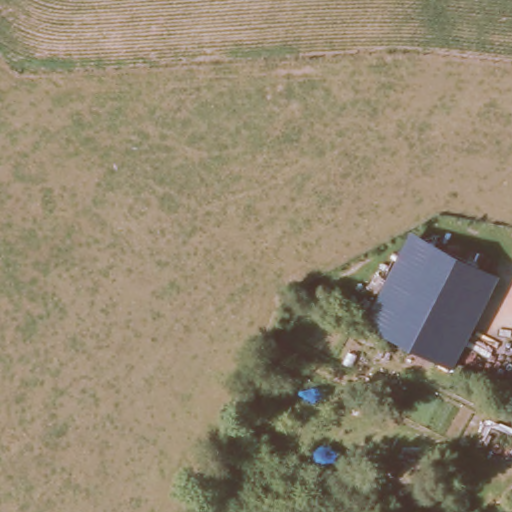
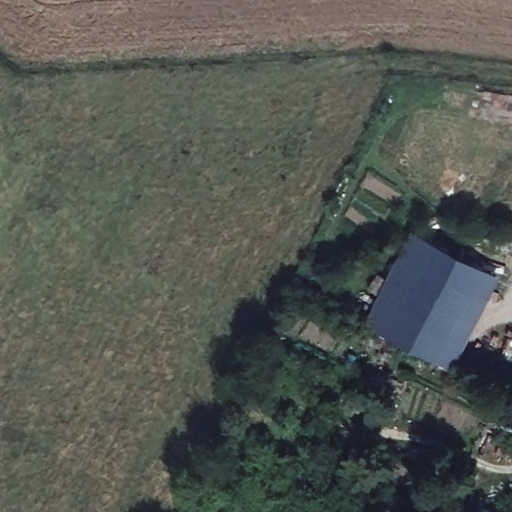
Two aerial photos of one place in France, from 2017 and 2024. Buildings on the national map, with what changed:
unchanged [(437,246),(501,276),(453,370),(386,337),(363,327),(411,231),(437,246)]

